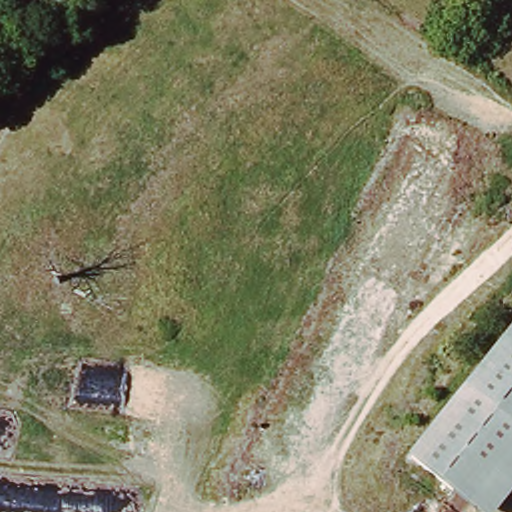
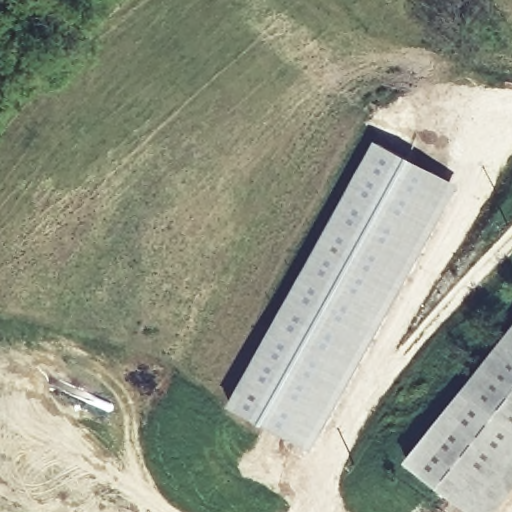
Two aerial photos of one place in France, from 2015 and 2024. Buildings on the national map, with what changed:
new [(377,143),(459,186),(315,450),(232,406),(377,143)]
unchanged [(410,463),(421,448),(477,378),(512,335),(512,495),(511,496),(500,511),(499,512),(472,512),(410,463)]

